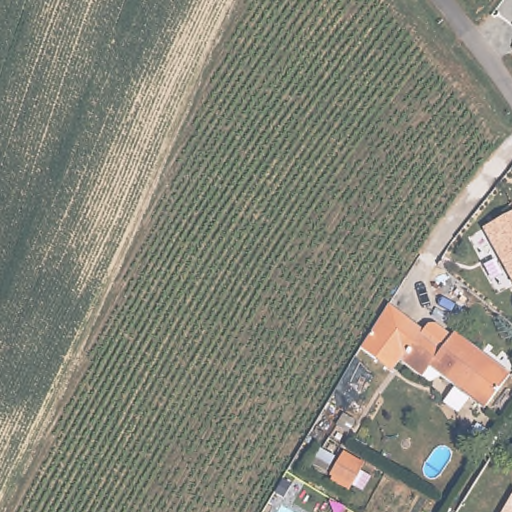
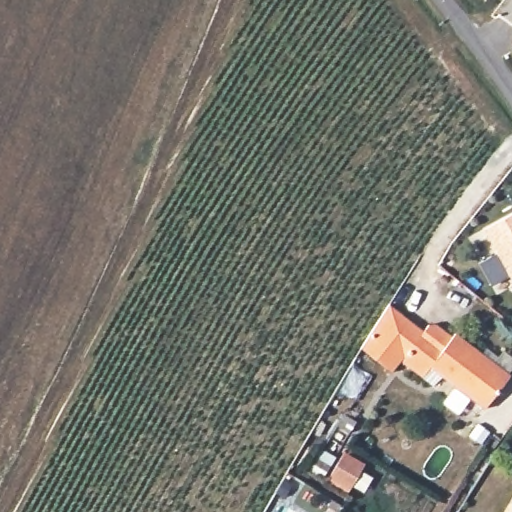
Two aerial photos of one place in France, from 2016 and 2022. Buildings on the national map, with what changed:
unchanged [(512,213),(512,285),(481,228),(512,213)]
unchanged [(424,334),(405,359),(393,373),(360,350),(390,306),(424,334)]
unchanged [(424,334),(427,330),(447,345),(458,332),(512,372),(512,374),(488,406),(433,366),(426,376),(405,359),(424,334)]
unchanged [(336,425),(342,413),(353,421),(347,432),(336,425)]
unchanged [(505,505),(512,493),(512,512),(500,512),(505,505)]

